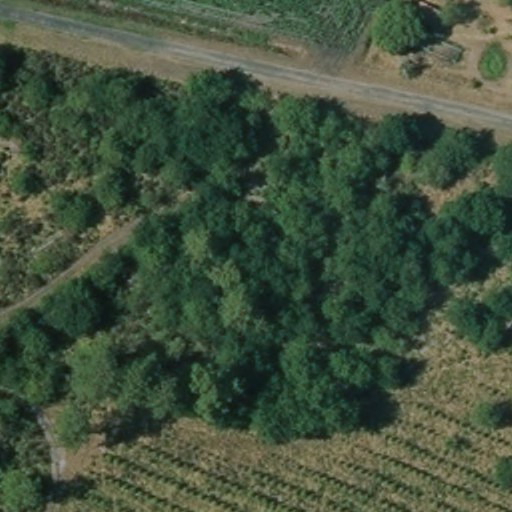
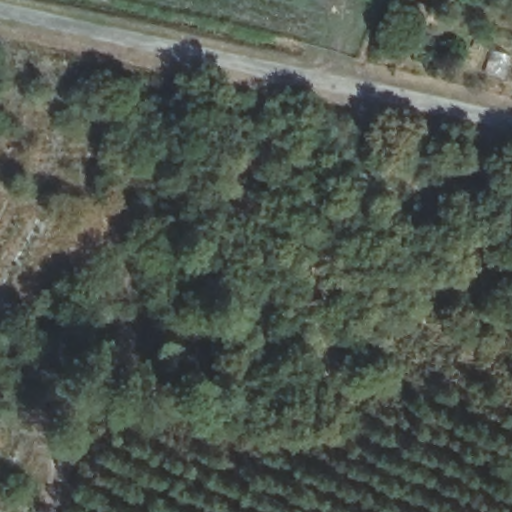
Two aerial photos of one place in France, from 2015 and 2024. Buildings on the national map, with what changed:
[]

